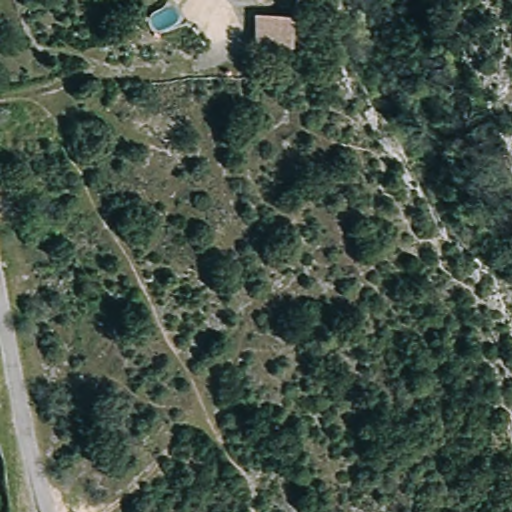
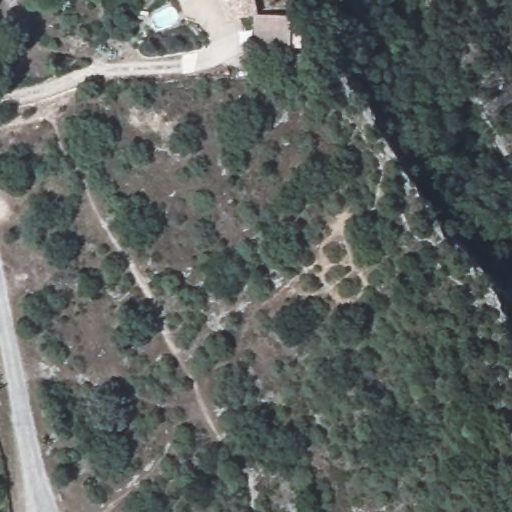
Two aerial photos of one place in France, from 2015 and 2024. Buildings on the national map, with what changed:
unchanged [(255,45),(255,12),(291,13),(290,47),(255,45)]

